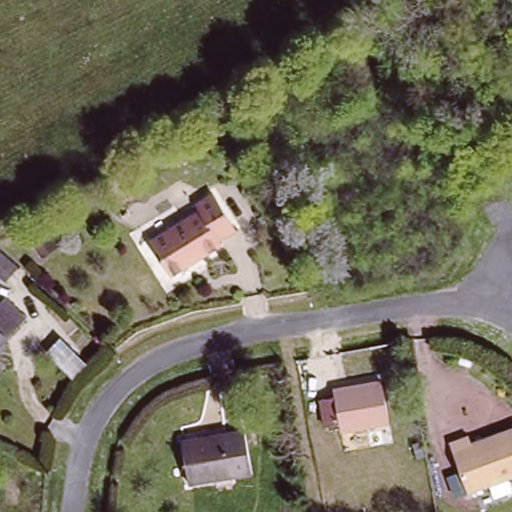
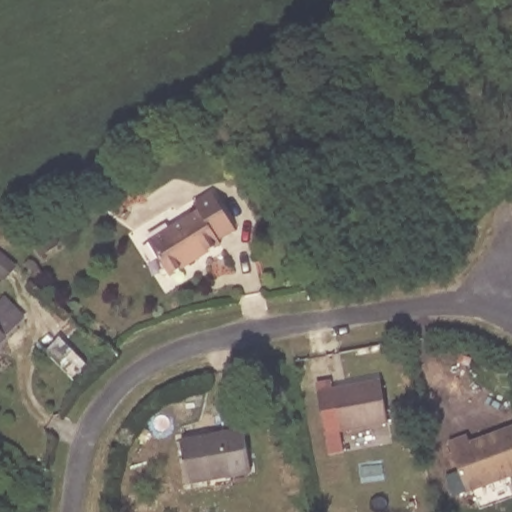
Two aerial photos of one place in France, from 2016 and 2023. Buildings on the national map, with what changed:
unchanged [(230,229),(213,239),(216,242),(165,273),(145,241),(194,209),(190,204),(207,193),(230,229)]
unchanged [(28,251),(41,242),(45,240),(51,250),(48,252),(35,261),(28,251)]
unchanged [(0,285),(0,264),(10,273),(0,285)]
unchanged [(0,304),(8,296),(28,315),(0,344),(0,304)]
unchanged [(331,397),(378,388),(386,430),(338,438),(331,397)]
unchanged [(440,447),(465,438),(467,448),(512,431),(512,482),(461,498),(440,447)]
unchanged [(252,432),(259,475),(196,485),(189,442),(252,432)]

